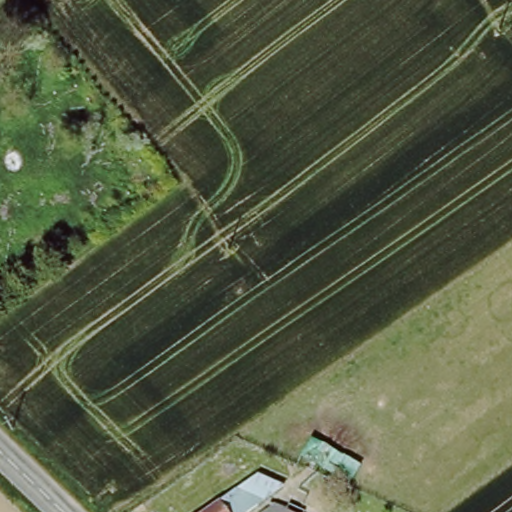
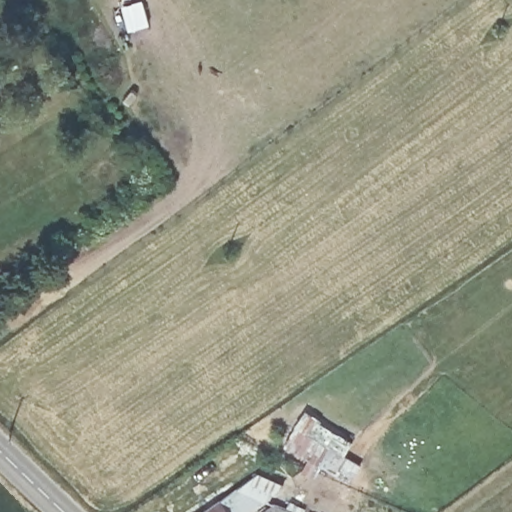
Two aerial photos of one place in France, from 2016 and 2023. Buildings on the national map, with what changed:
unchanged [(298,485),(259,512),(202,512),(264,468),(298,485)]

